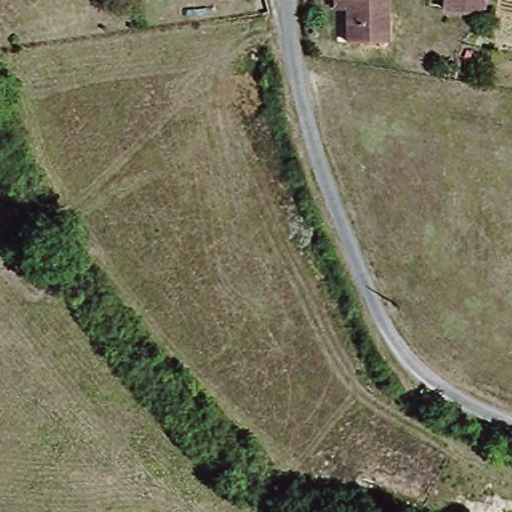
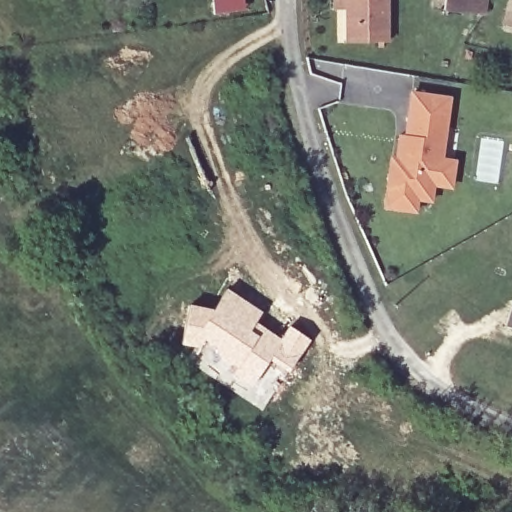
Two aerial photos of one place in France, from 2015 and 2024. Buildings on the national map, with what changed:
unchanged [(333,0),(381,0),(383,43),(336,45),(333,0)]
unchanged [(485,17),(444,13),(445,0),(487,0),(485,17)]
new [(445,158),(457,160),(452,190),(437,188),(434,205),(419,203),(417,215),(382,209),(390,158),(395,159),(399,134),(405,135),(411,91),(453,96),(445,158)]
new [(186,308),(209,312),(224,292),(255,316),(241,337),(268,356),(285,330),(304,344),(276,384),(257,372),(245,391),(244,390),(224,377),(229,371),(212,359),(209,350),(198,341),(192,349),(176,345),(186,308)]
new [(512,304),(512,327),(506,325),(512,304)]
new [(192,349),(198,341),(209,350),(212,359),(229,371),(224,377),(244,390),(245,391),(257,372),(276,384),(256,414),(184,363),(192,349)]

